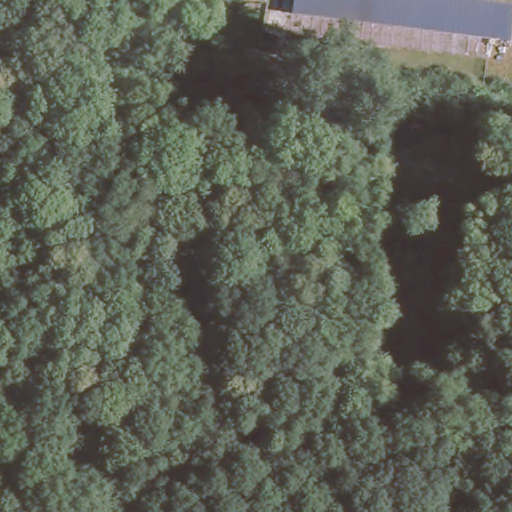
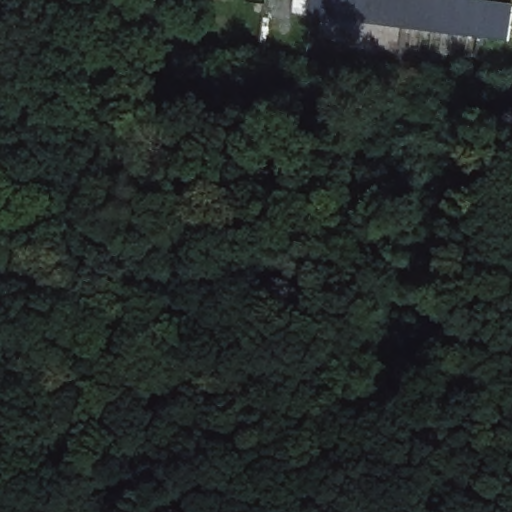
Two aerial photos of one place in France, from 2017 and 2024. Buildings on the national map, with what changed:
unchanged [(487,38),(292,15),(294,0),(476,0),(495,3),(487,38)]

